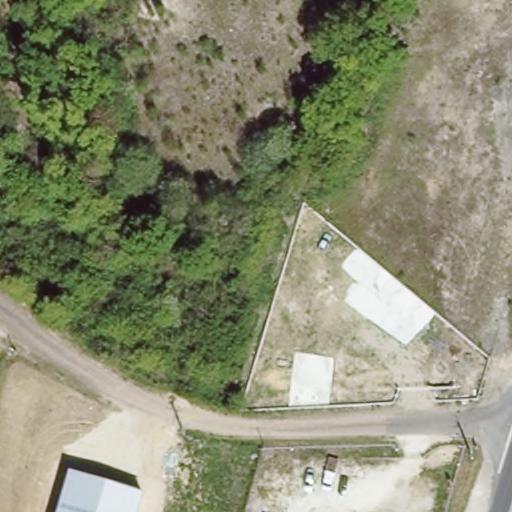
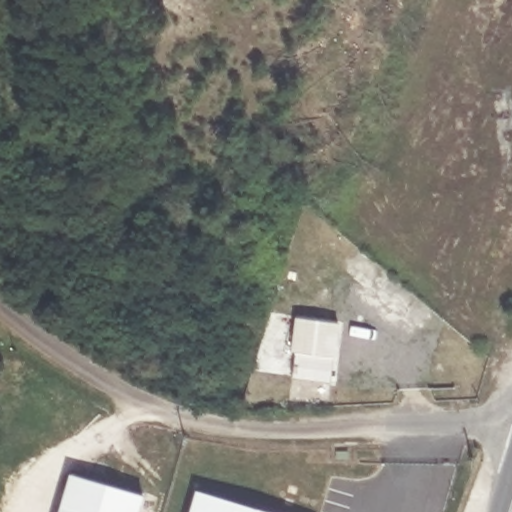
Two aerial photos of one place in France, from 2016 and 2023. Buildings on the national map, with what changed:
new [(297,322),(339,326),(334,380),(295,376),(298,351),(295,351),(297,322)]
unchanged [(70,472),(145,495),(140,512),(58,512),(70,472)]
new [(196,489),(276,512),(189,512),(196,489)]

